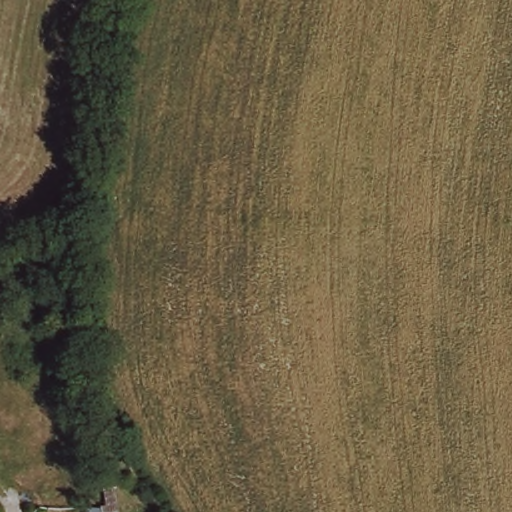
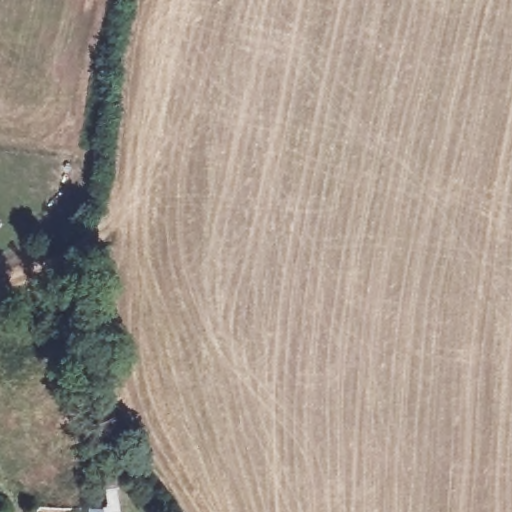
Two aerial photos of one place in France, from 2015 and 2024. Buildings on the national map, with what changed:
[]

